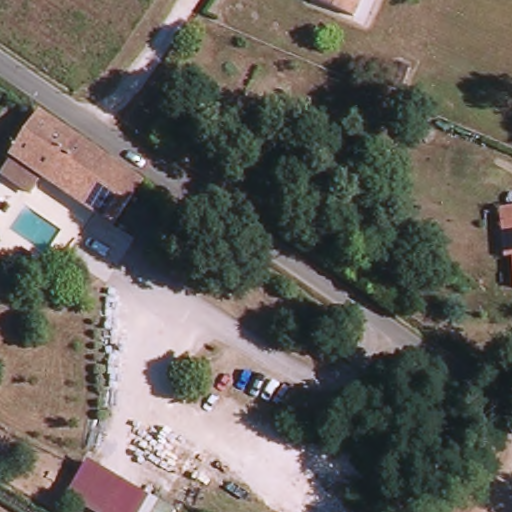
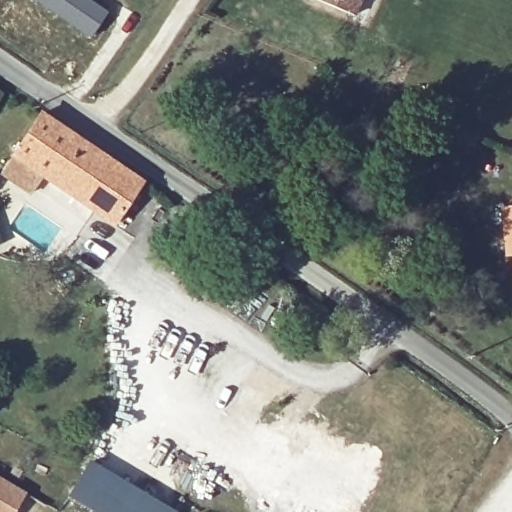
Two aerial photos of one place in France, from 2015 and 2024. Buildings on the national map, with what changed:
new [(108,11),(90,38),(34,0),(92,0),(108,11)]
unchanged [(306,4),(309,0),(354,0),(343,22),(306,4)]
unchanged [(111,227),(7,159),(36,115),(138,183),(111,227)]
unchanged [(512,203),(512,278),(508,253),(500,255),(495,224),(492,204),(512,203)]
unchanged [(178,512),(96,512),(68,496),(91,459),(179,511),(178,512)]
new [(14,512),(0,512),(0,477),(25,492),(14,512)]

